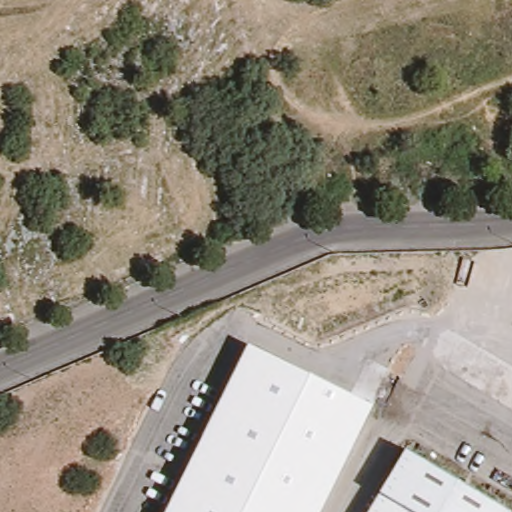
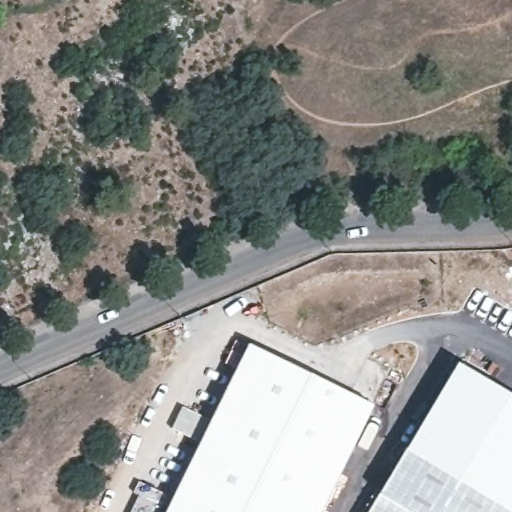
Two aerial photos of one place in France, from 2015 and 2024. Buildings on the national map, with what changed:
unchanged [(371,406),(320,512),(166,512),(250,345),(371,406)]
new [(512,505),(407,446),(456,363),(512,395),(512,505)]
unchanged [(512,505),(512,511),(511,512),(369,512),(407,446),(512,505)]

